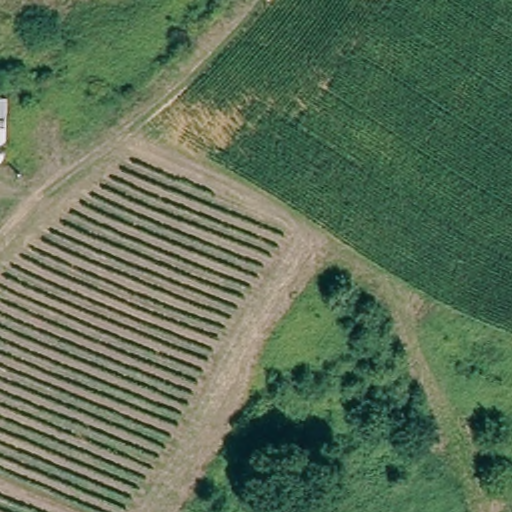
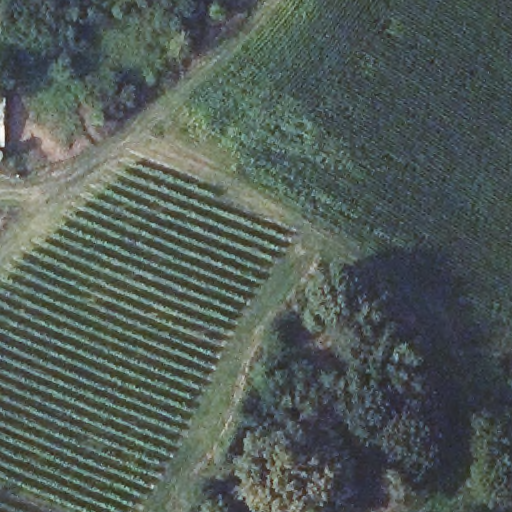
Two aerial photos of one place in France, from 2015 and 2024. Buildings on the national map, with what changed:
unchanged [(3,146),(0,146),(0,100),(3,101),(3,146)]

